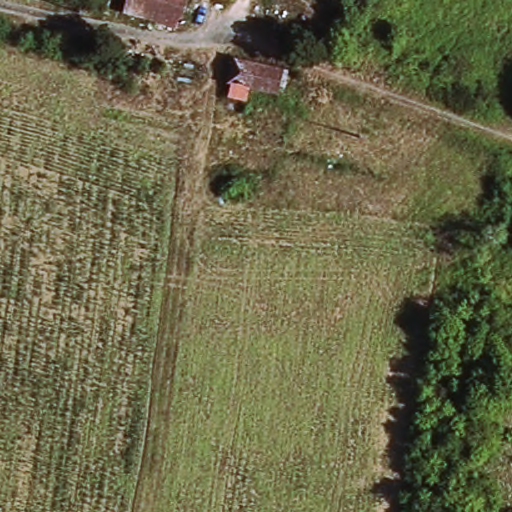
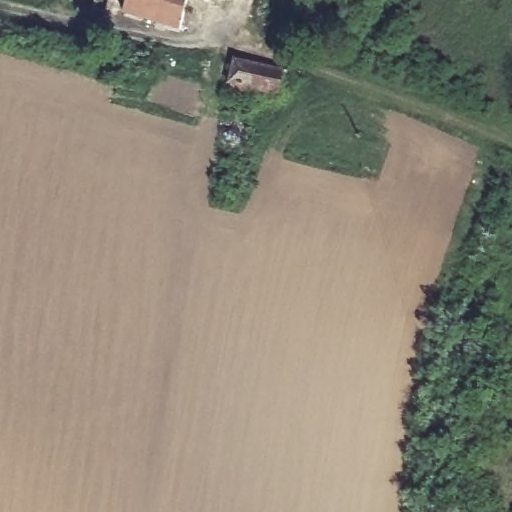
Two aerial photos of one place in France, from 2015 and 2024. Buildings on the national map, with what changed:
unchanged [(119,2),(110,2),(107,15),(105,20),(90,16),(94,0),(120,0),(119,2)]
unchanged [(177,32),(120,19),(127,0),(187,0),(177,32)]
unchanged [(229,5),(202,0),(230,0),(229,5)]
unchanged [(345,3),(335,0),(347,0),(345,3)]
unchanged [(267,69),(285,73),(282,96),(250,90),(247,105),(229,102),(237,64),(267,69)]

